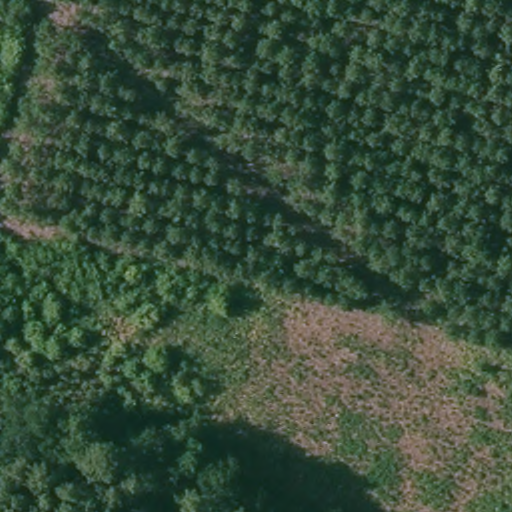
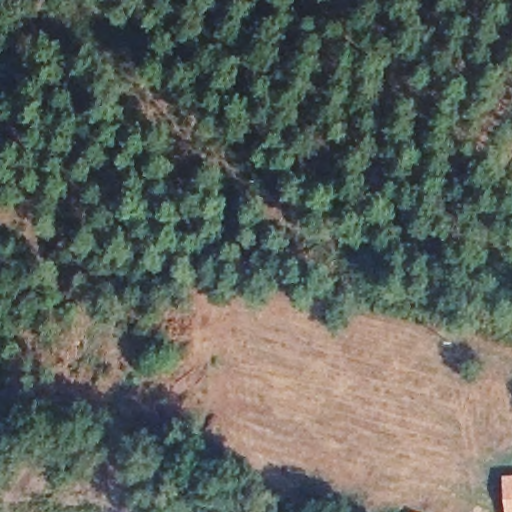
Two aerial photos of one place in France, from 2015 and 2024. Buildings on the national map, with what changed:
new [(512,474),(512,512),(505,512),(502,475),(512,474)]

